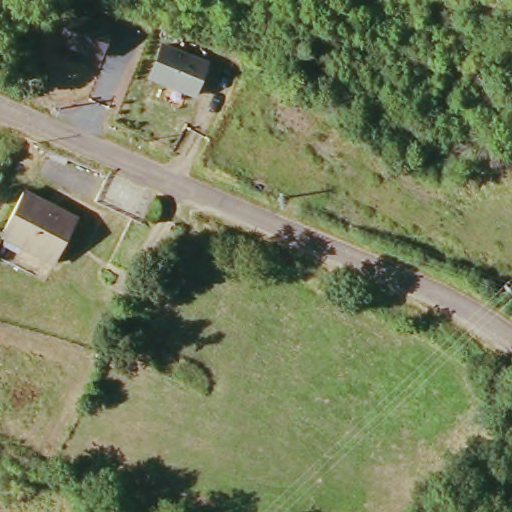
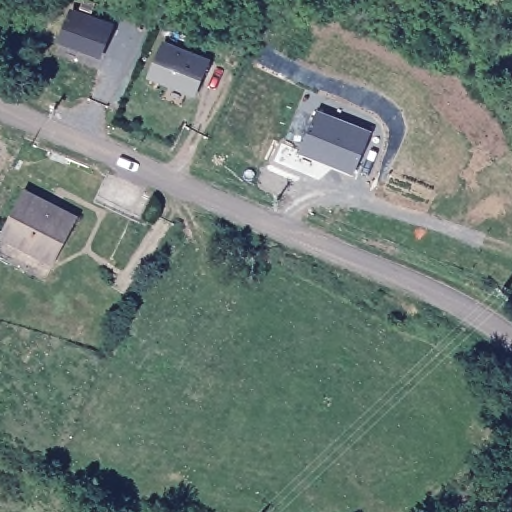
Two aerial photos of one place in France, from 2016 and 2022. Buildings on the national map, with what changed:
unchanged [(113,27),(103,55),(63,41),(73,14),(113,27)]
unchanged [(209,65),(196,98),(150,81),(163,47),(209,65)]
new [(318,116),(370,136),(356,172),(304,153),(318,116)]
unchanged [(141,193),(127,217),(92,200),(103,177),(141,193)]
unchanged [(73,219),(51,262),(0,235),(0,228),(19,191),(73,219)]

